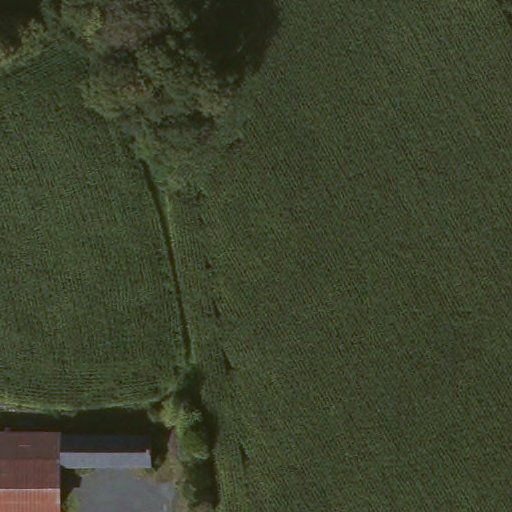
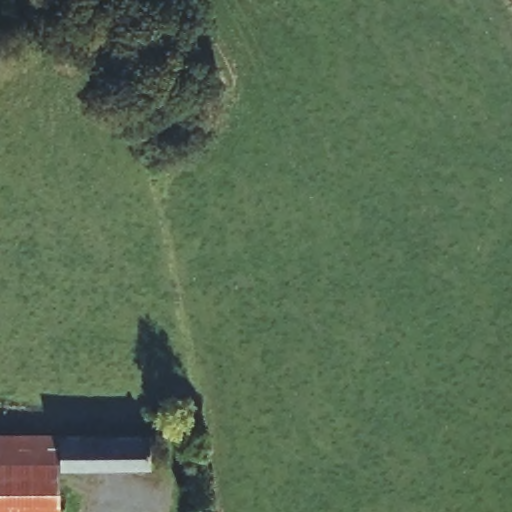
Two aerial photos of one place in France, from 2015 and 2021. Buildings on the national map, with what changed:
unchanged [(64,463),(63,512),(0,512),(0,428),(64,430),(64,463)]
unchanged [(64,430),(103,431),(156,433),(154,464),(64,463),(64,430)]

